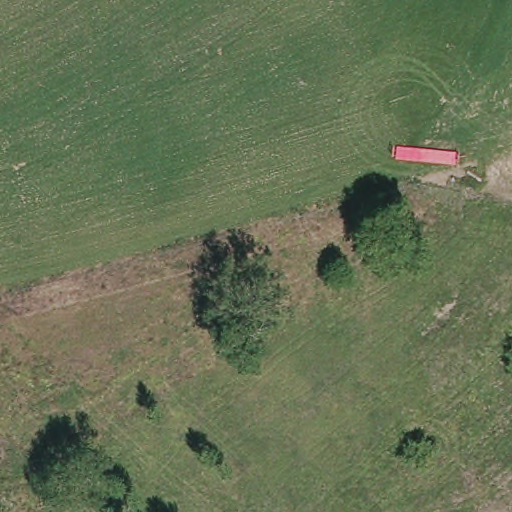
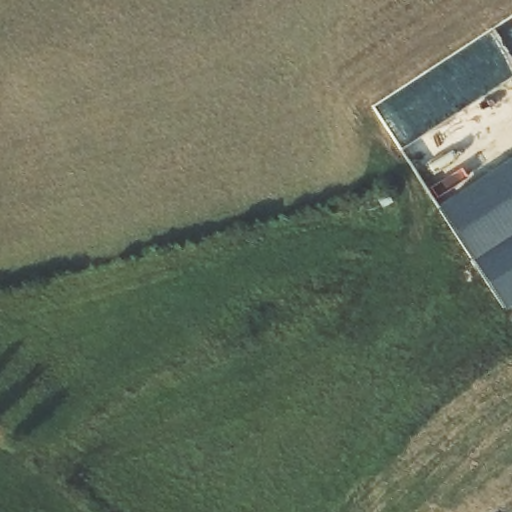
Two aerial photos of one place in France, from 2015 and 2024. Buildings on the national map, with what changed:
new [(505,313),(436,208),(512,157),(512,308),(505,313)]

